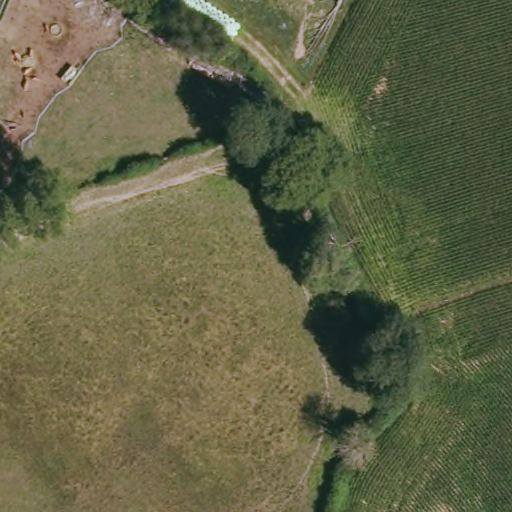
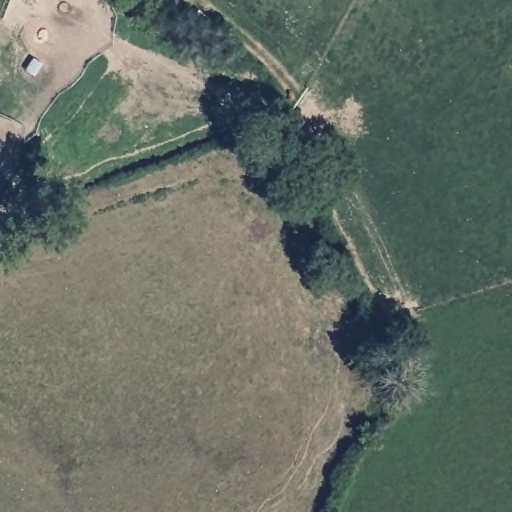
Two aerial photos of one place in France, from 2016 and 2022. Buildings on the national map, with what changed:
[]

